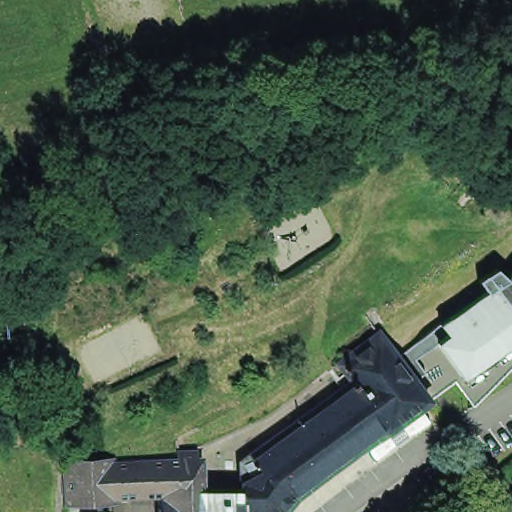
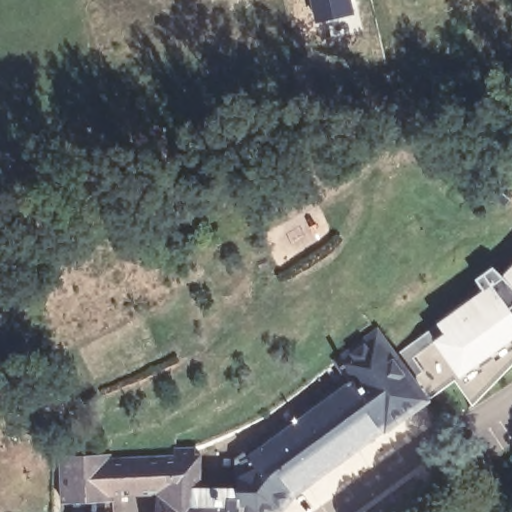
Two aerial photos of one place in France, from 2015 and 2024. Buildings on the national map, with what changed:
new [(305,26),(302,0),(347,0),(348,16),(305,26)]
unchanged [(505,204),(492,194),(482,205),(470,195),(480,184),(467,174),(445,157),(453,146),(475,162),(512,191),(512,195),(505,204)]
unchanged [(471,403),(454,379),(435,397),(397,351),(437,320),(480,288),(474,276),(492,263),(502,273),(512,263),(512,363),(471,403)]
unchanged [(428,396),(388,425),(387,423),(297,490),(285,505),(269,512),(158,512),(158,490),(159,450),(202,443),(234,427),(265,413),(293,391),(372,329),(377,326),(428,396)]
unchanged [(113,493),(65,492),(65,485),(61,484),(62,448),(159,450),(158,490),(113,489),(113,493)]

